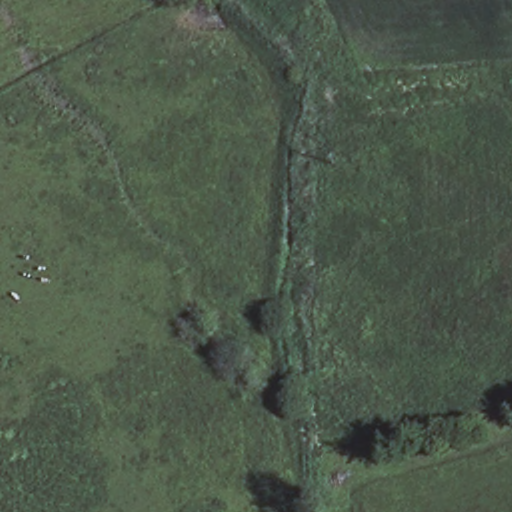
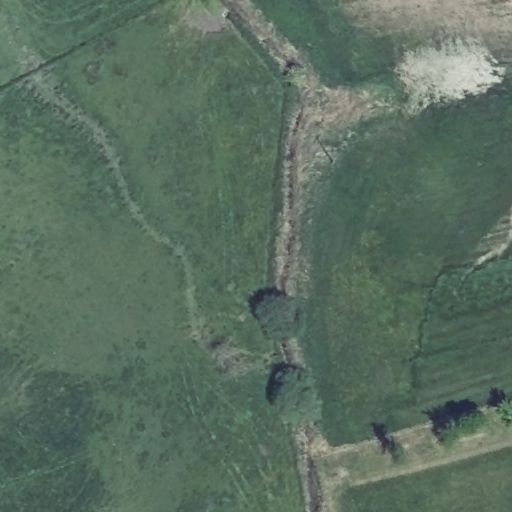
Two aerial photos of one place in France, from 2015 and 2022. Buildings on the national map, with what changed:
[]

